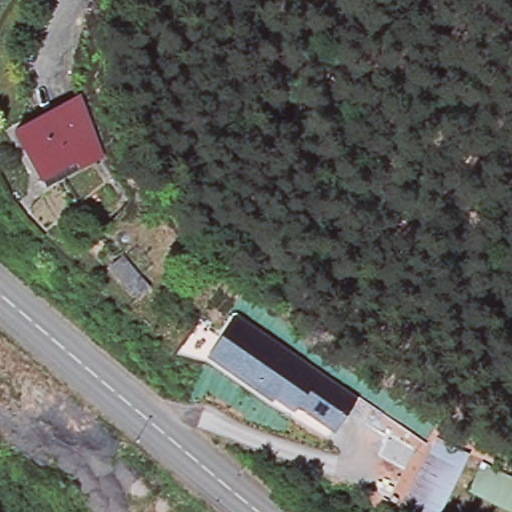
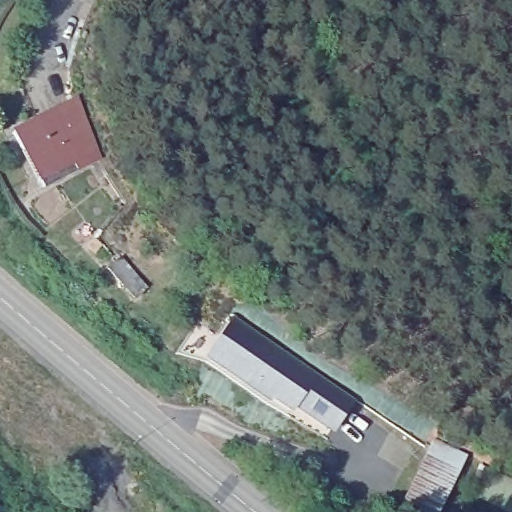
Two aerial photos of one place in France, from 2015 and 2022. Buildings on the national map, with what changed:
unchanged [(17,129),(84,99),(102,158),(48,187),(44,178),(26,145),(17,129)]
unchanged [(130,258),(157,287),(145,297),(119,268),(130,258)]
unchanged [(298,400),(295,404),(252,374),(249,378),(211,352),(237,315),(355,397),(335,426),(298,400)]
unchanged [(440,440),(466,456),(432,512),(425,512),(404,499),(440,440)]
unchanged [(512,478),(512,512),(503,512),(476,499),(492,469),(512,478)]

